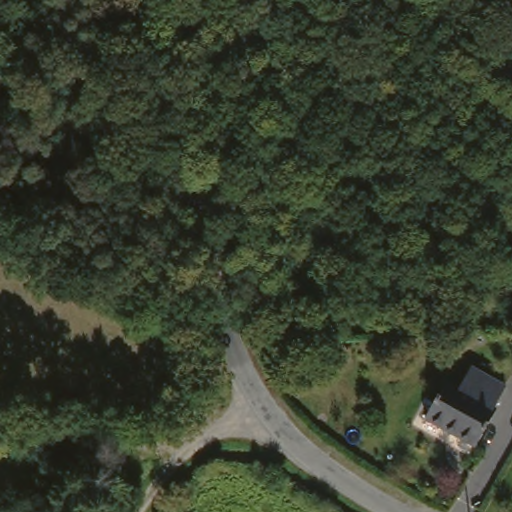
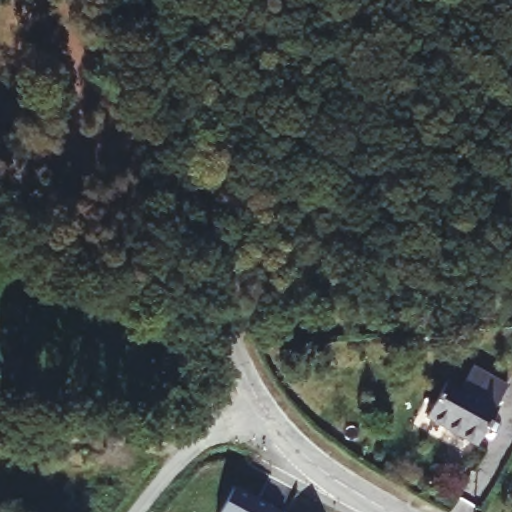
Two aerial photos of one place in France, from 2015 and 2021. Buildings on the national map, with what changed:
unchanged [(453,388),(465,366),(499,385),(487,406),(493,409),(473,444),(421,417),(442,381),(453,388)]
new [(274,512),(221,512),(233,489),(274,512)]

